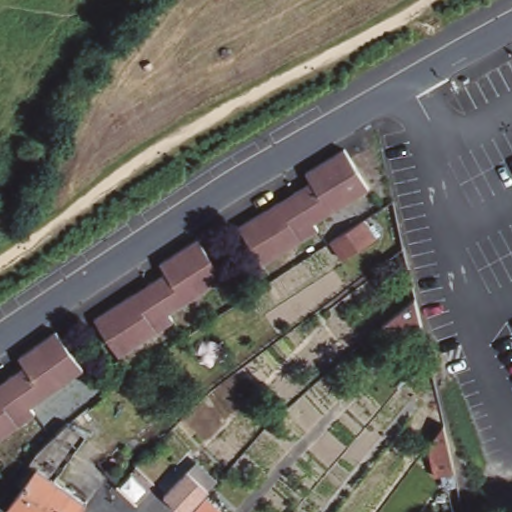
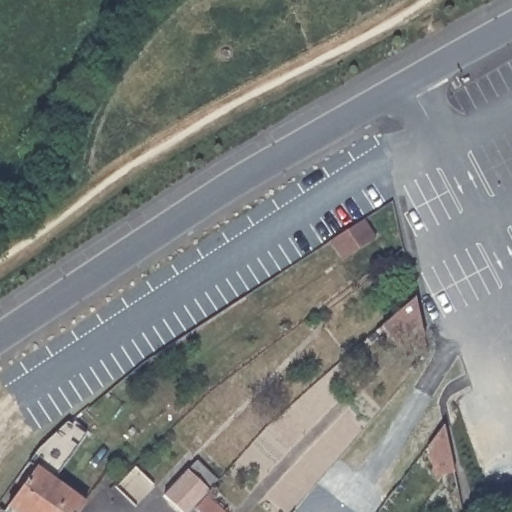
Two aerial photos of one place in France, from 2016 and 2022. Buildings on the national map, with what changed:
demolished [(285,209),(300,200),(295,191),(313,180),(307,171),(347,147),(357,165),(358,167),(371,188),(316,222),(319,229),(265,262),(245,231),(241,225),(280,200),(285,209)]
unchanged [(377,237),(343,260),(332,241),(340,235),(365,219),(377,237)]
demolished [(140,298),(155,289),(153,287),(150,281),(166,271),(160,262),(177,251),(199,238),(208,253),(225,278),(171,313),(175,320),(122,356),(97,321),(95,318),(135,291),(138,296),(140,298)]
unchanged [(407,246),(415,281),(398,293),(378,267),(407,246)]
unchanged [(411,296),(412,295),(422,338),(398,354),(378,325),(411,296)]
demolished [(12,380),(10,376),(27,364),(24,360),(20,354),(56,329),(61,336),(62,338),(82,365),(30,403),(35,410),(0,435),(0,391),(14,381),(12,380)]
unchanged [(44,452),(55,442),(74,426),(84,433),(53,478),(87,501),(79,512),(17,512),(11,507),(37,470),(32,467),(44,452)]
unchanged [(446,426),(457,473),(437,478),(430,446),(446,426)]
unchanged [(188,471),(211,490),(210,491),(191,512),(182,512),(165,497),(188,471)]

